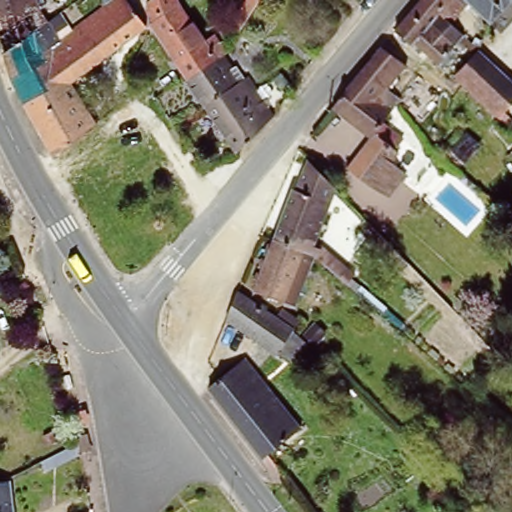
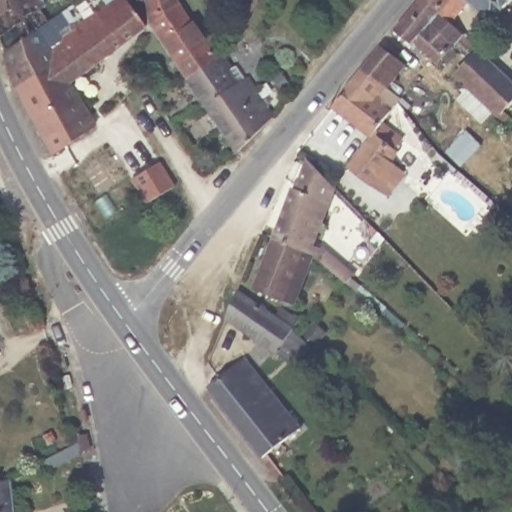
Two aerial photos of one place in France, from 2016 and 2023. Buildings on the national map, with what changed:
unchanged [(48,26),(6,60),(0,42),(0,0),(37,0),(48,26)]
unchanged [(75,31),(112,1),(114,0),(131,0),(135,5),(137,2),(142,8),(143,10),(135,16),(145,30),(82,80),(77,84),(62,62),(85,44),(75,31)]
unchanged [(94,0),(102,0),(97,4),(94,0)]
unchanged [(153,0),(173,0),(202,46),(209,42),(219,58),(185,82),(153,33),(150,28),(147,4),(153,0)]
unchanged [(257,0),(240,30),(230,24),(244,0),(257,0)]
unchanged [(421,0),(436,15),(429,24),(454,45),(457,41),(465,49),(448,70),(414,41),(412,45),(395,31),(420,0),(421,0)]
unchanged [(461,36),(457,41),(454,45),(429,24),(436,15),(421,0),(464,0),(512,0),(488,24),(468,5),(448,25),(461,36)]
unchanged [(12,77),(6,60),(48,26),(57,46),(75,31),(85,44),(62,62),(22,95),(12,77)]
unchanged [(380,48),(407,69),(397,81),(408,90),(399,101),(362,70),(380,48)]
unchanged [(502,124),(495,119),(467,91),(452,77),(465,65),(472,56),(477,51),(512,83),(512,100),(502,112),(507,117),(502,124)]
unchanged [(219,58),(222,56),(225,55),(247,90),(235,100),(230,94),(202,112),(185,82),(219,58)]
unchanged [(62,62),(77,84),(82,80),(87,87),(92,85),(100,99),(86,107),(97,126),(74,148),(57,160),(22,95),(62,62)]
unchanged [(373,140),(333,105),(362,70),(399,101),(396,105),(387,117),(392,122),(387,129),(400,139),(392,150),(398,155),(392,164),(406,175),(388,195),(370,185),(350,167),(373,140)]
unchanged [(230,94),(235,100),(247,90),(248,92),(265,117),(230,157),(202,112),(230,94)]
unchanged [(345,283),(328,268),(312,252),(276,237),(294,185),(298,187),(308,159),(335,188),(315,242),(320,246),(321,244),(333,255),(355,272),(345,283)]
new [(163,162),(180,185),(152,202),(136,180),(163,162)]
unchanged [(309,259),(302,256),(286,302),(257,291),(276,237),(312,252),(309,259)]
unchanged [(276,321),(283,313),(303,333),(296,340),(301,345),(282,366),(232,318),(242,290),(276,321)]
unchanged [(245,361),(299,433),(267,457),(262,461),(208,389),(245,361)]
unchanged [(78,438),(87,435),(91,449),(83,452),(85,460),(50,473),(45,461),(82,446),(78,438)]
unchanged [(46,438),(54,435),(57,446),(50,449),(46,438)]
unchanged [(8,512),(0,512),(0,476),(2,476),(8,512)]

